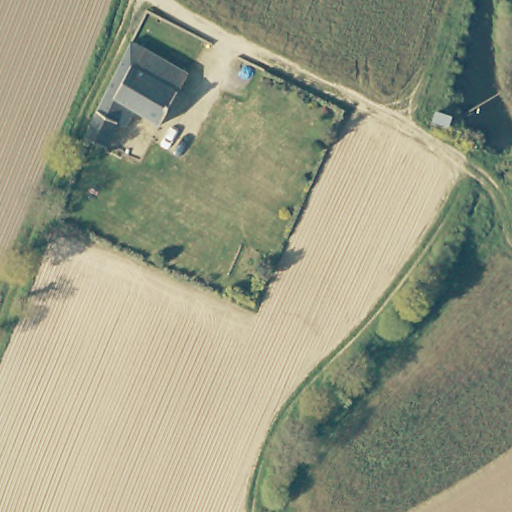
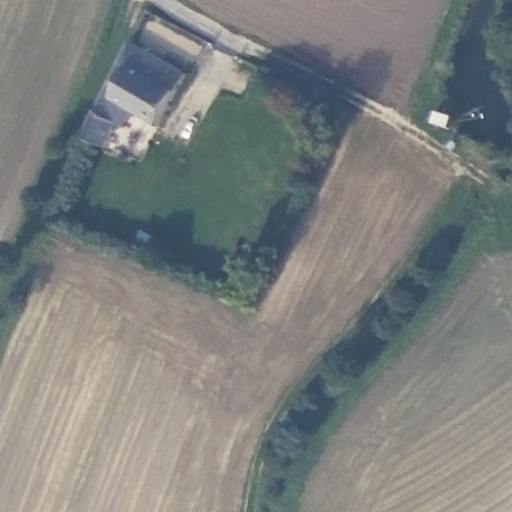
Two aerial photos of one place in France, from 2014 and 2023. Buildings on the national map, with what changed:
unchanged [(167,122),(120,100),(146,49),(190,72),(167,122)]
unchanged [(97,110),(119,119),(110,142),(88,134),(97,110)]

